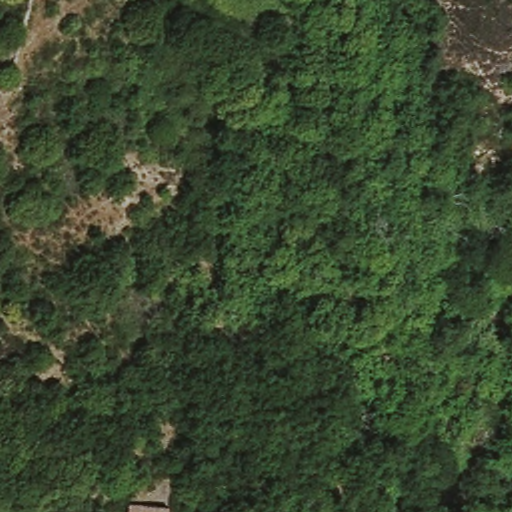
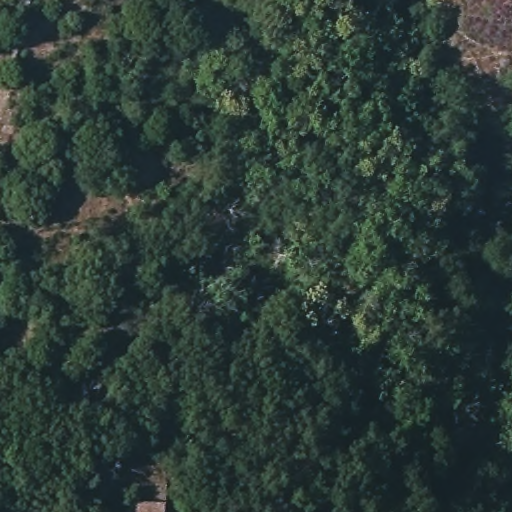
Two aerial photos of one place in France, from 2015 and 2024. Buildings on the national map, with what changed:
unchanged [(125,512),(125,503),(167,503),(167,512),(125,512)]

